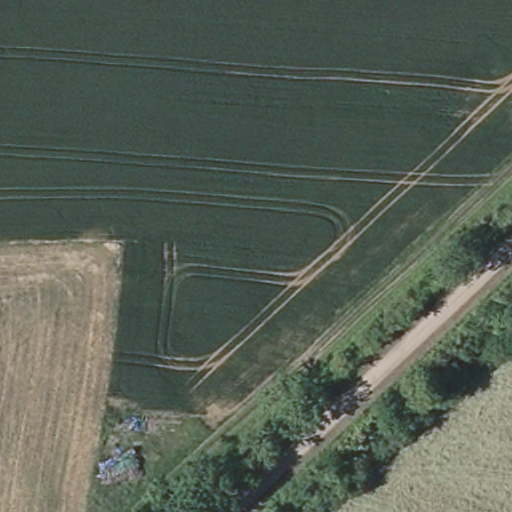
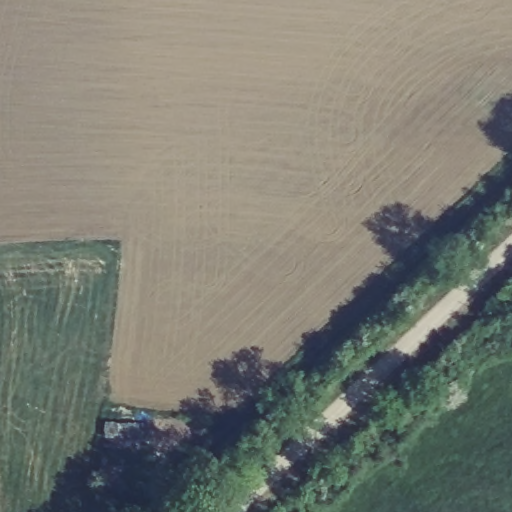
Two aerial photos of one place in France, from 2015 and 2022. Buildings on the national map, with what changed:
[]

